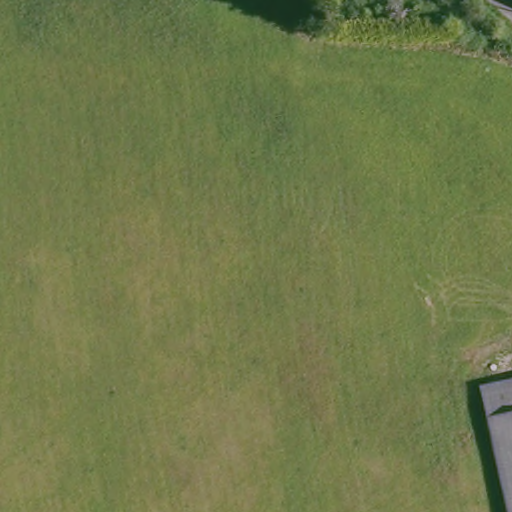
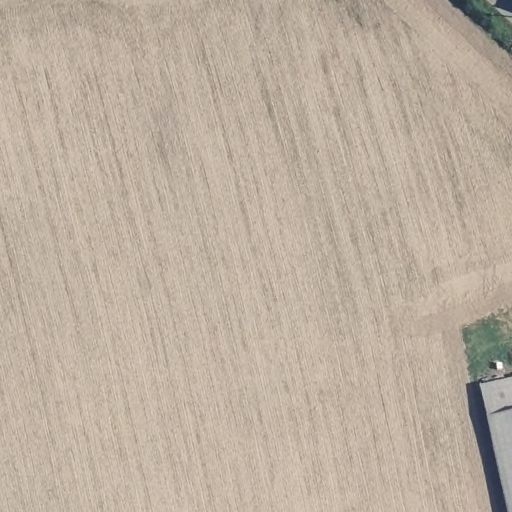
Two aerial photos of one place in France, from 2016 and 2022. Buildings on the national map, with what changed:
unchanged [(484,422),(477,390),(512,382),(512,512),(506,512),(486,423),(484,422)]

